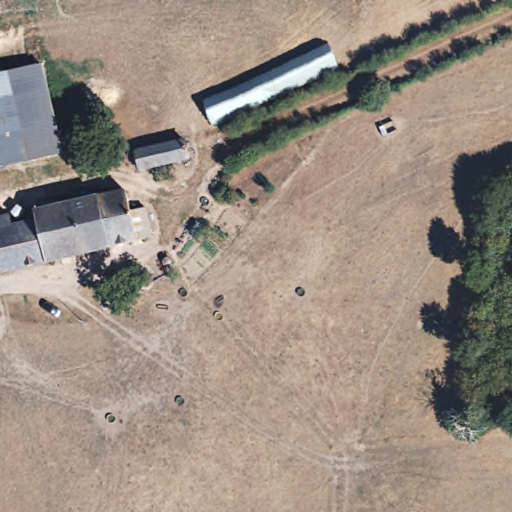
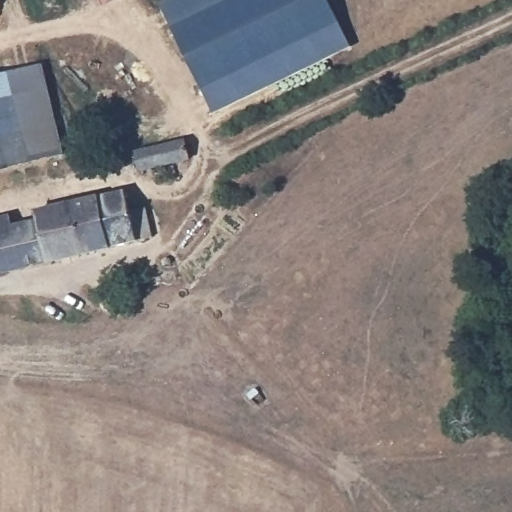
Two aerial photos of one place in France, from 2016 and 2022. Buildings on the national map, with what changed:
new [(329,0),(352,47),(215,114),(160,3),(167,0),(329,0)]
unchanged [(64,153),(0,166),(0,79),(44,69),(64,153)]
unchanged [(134,152),(185,139),(190,157),(139,173),(134,152)]
unchanged [(37,226),(35,217),(129,197),(136,245),(0,277),(0,225),(11,222),(14,231),(37,226)]

